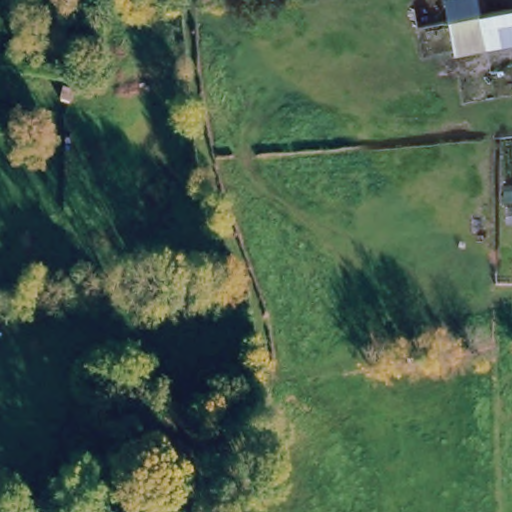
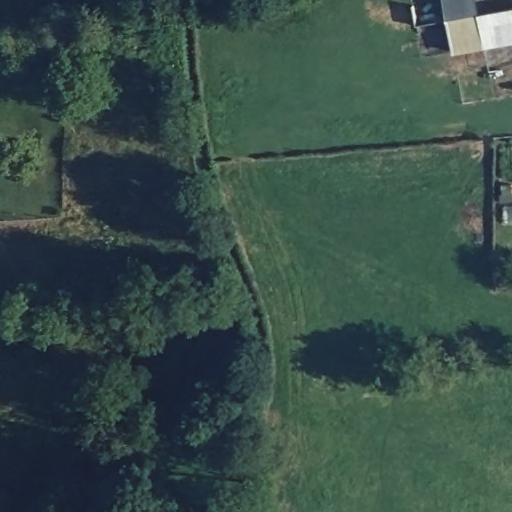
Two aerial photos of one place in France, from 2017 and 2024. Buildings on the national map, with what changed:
unchanged [(439,0),(512,0),(512,43),(448,54),(439,0)]

